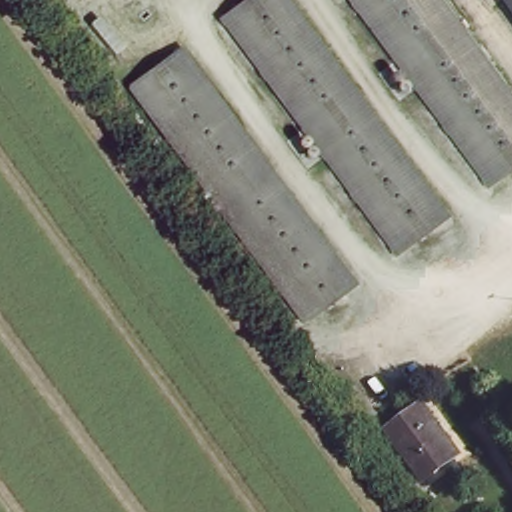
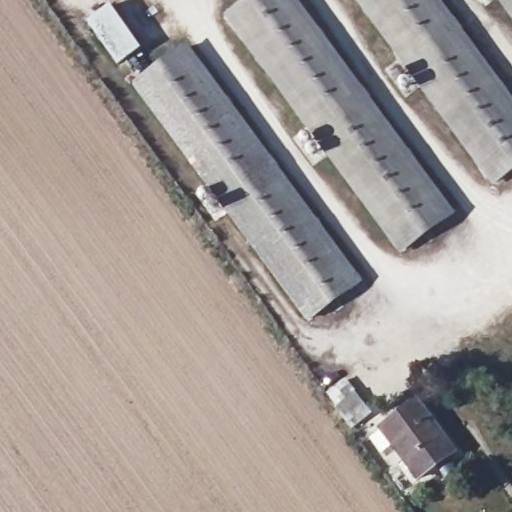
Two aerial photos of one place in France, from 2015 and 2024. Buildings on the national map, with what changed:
unchanged [(216,11),(230,0),(287,0),(443,207),(392,246),(216,11)]
unchanged [(435,0),(512,103),(512,159),(489,176),(358,0),(435,0)]
unchanged [(512,0),(512,14),(501,0),(512,0)]
new [(87,21),(109,5),(140,48),(118,65),(87,21)]
unchanged [(354,277),(303,316),(126,81),(179,41),(354,277)]
unchanged [(317,380),(329,395),(317,405),(305,389),(317,380)]
unchanged [(408,397),(449,449),(413,478),(373,423),(408,397)]

